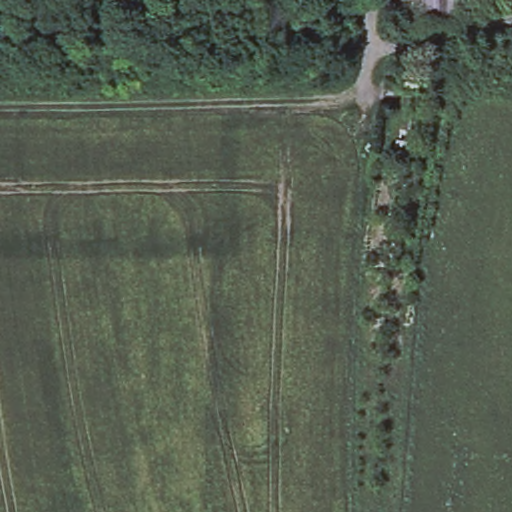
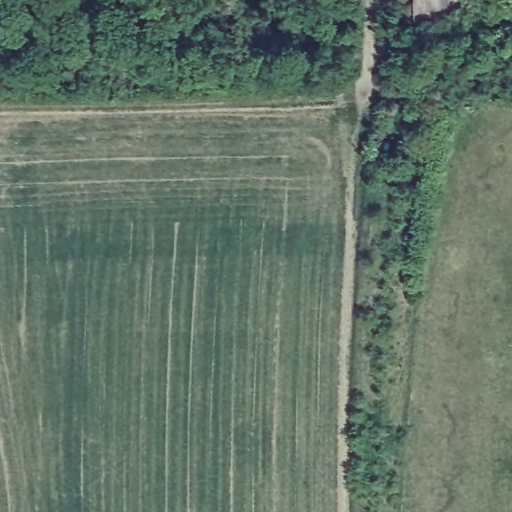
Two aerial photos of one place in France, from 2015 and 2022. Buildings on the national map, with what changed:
unchanged [(453,24),(413,19),(415,0),(456,0),(453,24)]

